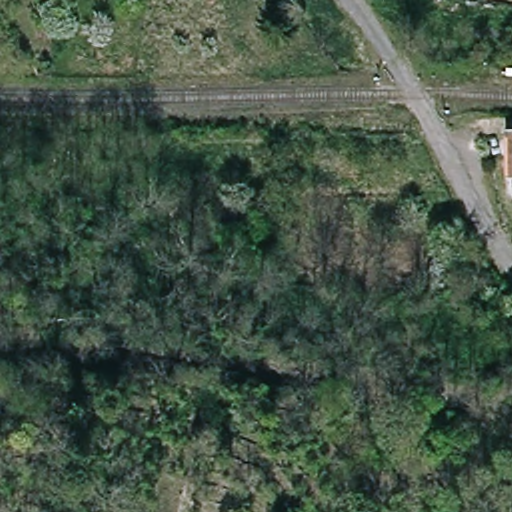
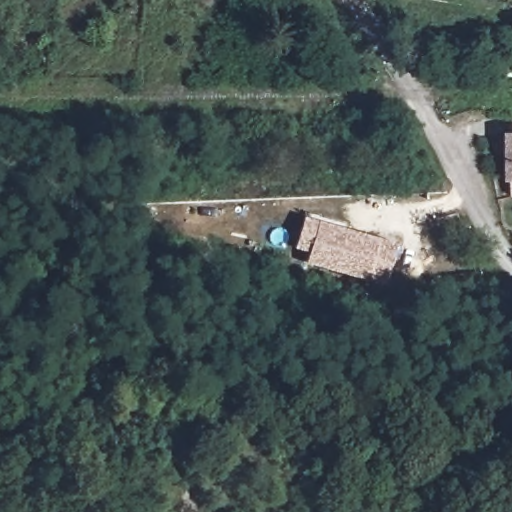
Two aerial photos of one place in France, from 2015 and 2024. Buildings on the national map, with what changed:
unchanged [(508,133),(512,133),(512,179),(508,179),(508,133)]
new [(397,244),(385,286),(306,263),(310,254),(295,249),(305,217),(397,244)]

